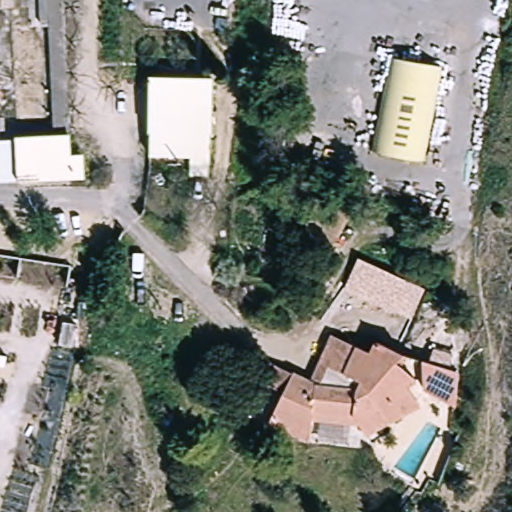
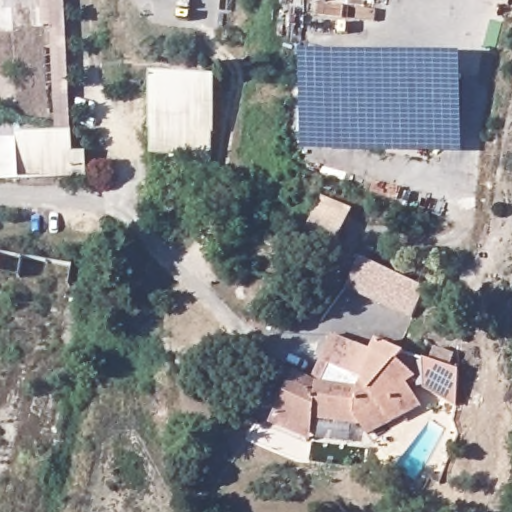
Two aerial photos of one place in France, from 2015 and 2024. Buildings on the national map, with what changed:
unchanged [(55,0),(67,0),(72,136),(61,136),(57,30),(55,0)]
demolished [(393,50),(446,61),(427,154),(374,143),(393,50)]
new [(461,89),(474,90),(469,116),(462,115),(462,152),(302,153),(302,56),(460,55),(461,89)]
unchanged [(216,77),(214,160),(214,171),(193,171),(193,162),(193,153),(153,152),(155,75),(216,77)]
unchanged [(3,138),(23,137),(41,137),(61,136),(72,136),(73,155),(86,156),(87,176),(35,177),(25,177),(4,178),(3,138)]
new [(334,248),(303,234),(320,196),(352,210),(334,248)]
unchanged [(349,289),(360,259),(425,289),(411,318),(349,289)]
unchanged [(297,371),(315,380),(336,334),(374,351),(379,340),(412,355),(405,364),(421,377),(414,386),(425,405),(373,434),(365,422),(322,415),(312,439),(274,422),(297,371)]
unchanged [(425,361),(432,363),(437,350),(453,355),(450,368),(459,372),(457,405),(425,390),(425,361)]

